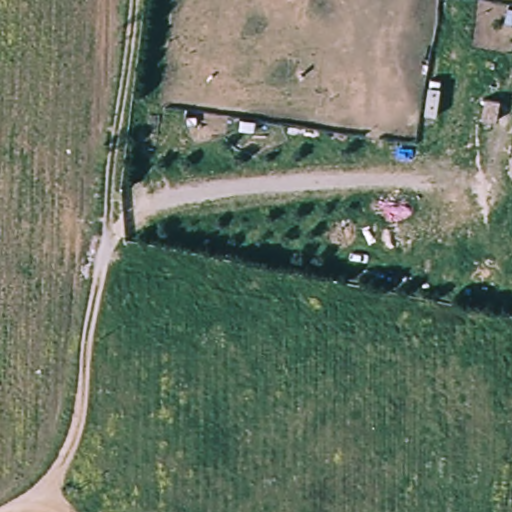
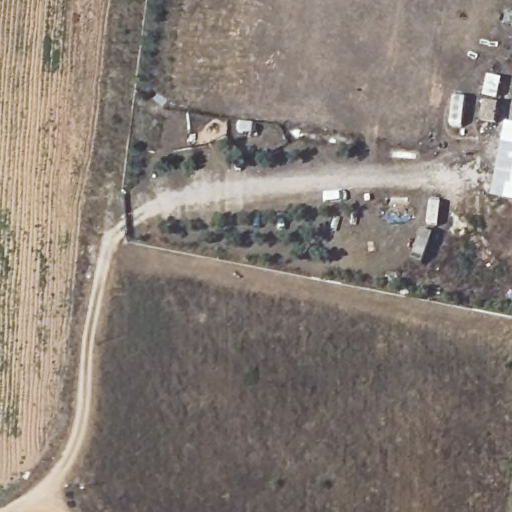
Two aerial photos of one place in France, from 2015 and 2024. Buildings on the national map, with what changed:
new [(507,120),(512,121),(512,199),(492,194),(507,120)]

